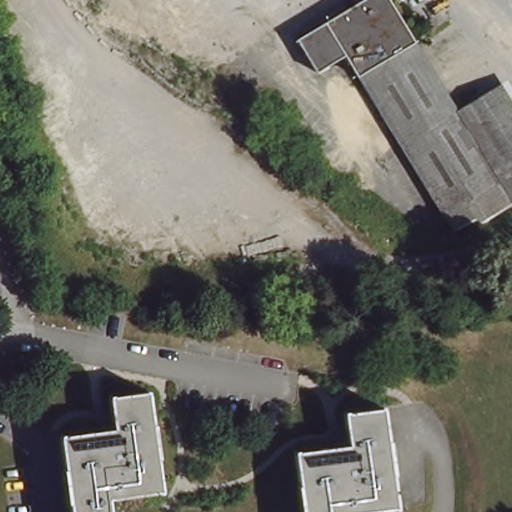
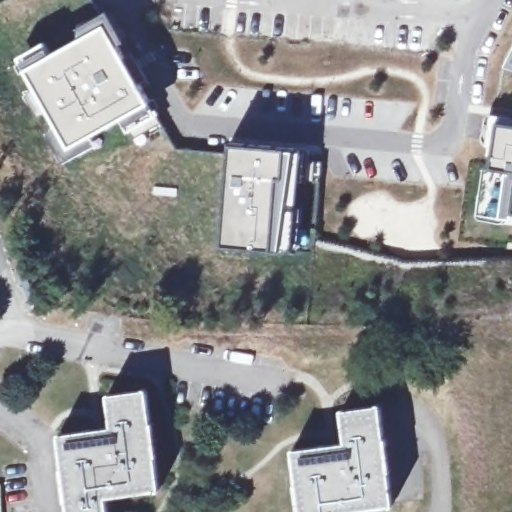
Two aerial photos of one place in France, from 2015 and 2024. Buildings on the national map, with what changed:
demolished [(377,0),(404,45),(402,48),(444,113),(498,79),(512,102),(512,164),(496,174),(512,199),(479,219),(476,214),(454,224),(360,76),(346,58),(324,23),(361,0),(377,0)]
new [(113,19),(163,109),(136,124),(129,111),(76,140),(33,63),(113,19)]
demolished [(346,58),(306,79),(284,46),(324,23),(346,58)]
new [(512,58),(512,115),(504,115),(512,59),(512,58)]
new [(315,144),(312,174),(298,173),(292,245),(229,240),(238,138),(315,144)]
new [(512,253),(502,253),(503,165),(512,166),(512,253)]
unchanged [(109,397),(147,392),(161,491),(108,498),(109,512),(70,512),(61,435),(113,428),(109,397)]
unchanged [(381,409),(394,505),(342,512),(302,512),(293,452),(347,444),(343,413),(381,409)]

